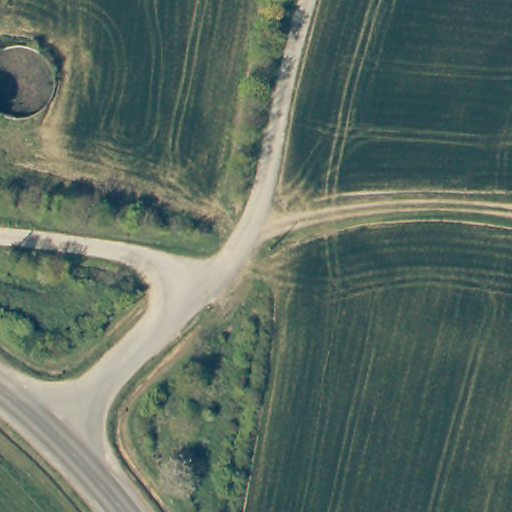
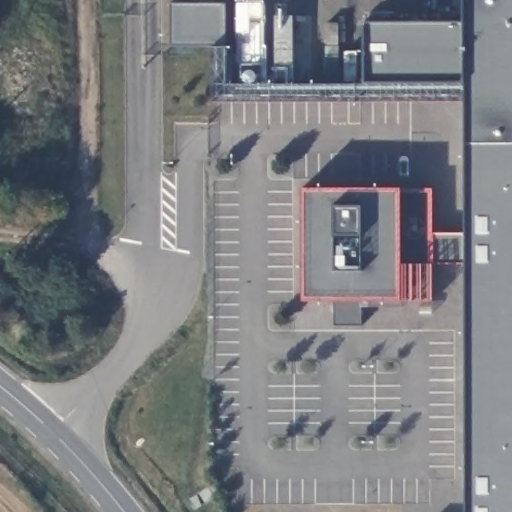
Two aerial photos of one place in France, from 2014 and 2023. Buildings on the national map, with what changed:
new [(433,265),(432,302),(301,303),(302,189),(432,190),(432,235),(464,235),(465,102),(212,104),(211,48),(171,48),(171,5),(198,6),(198,0),(265,0),(265,16),(292,15),(294,85),(362,87),(364,83),(363,24),(465,25),(465,0),(512,0),(512,512),(464,512),(465,265),(433,265)]

